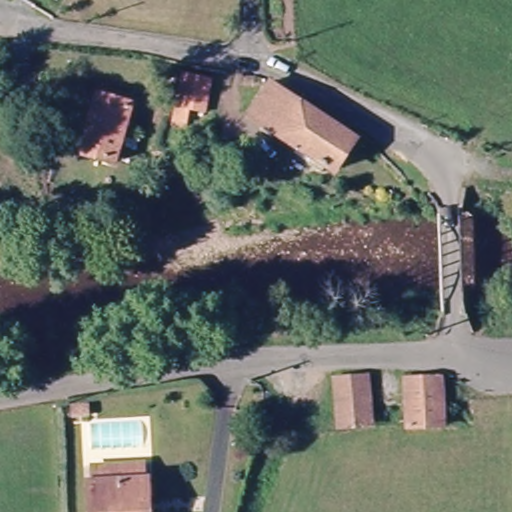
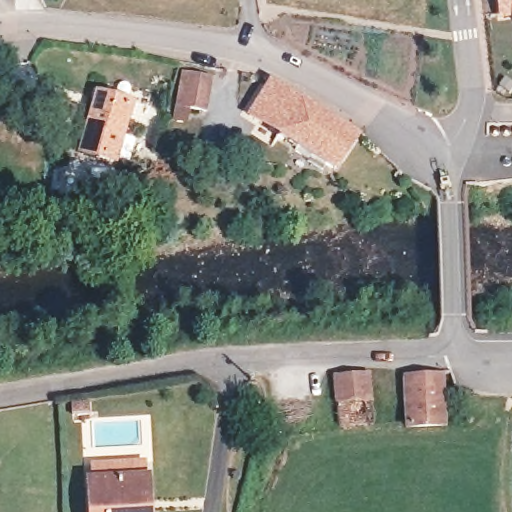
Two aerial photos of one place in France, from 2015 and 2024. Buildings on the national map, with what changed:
new [(495,0),(512,0),(512,19),(497,20),(495,0)]
unchanged [(184,123),(187,109),(192,75),(225,84),(217,115),(205,114),(201,128),(184,123)]
unchanged [(336,170),(251,116),(272,84),(357,135),(336,170)]
unchanged [(103,94),(138,105),(126,140),(119,165),(84,154),(86,145),(90,134),(103,94)]
unchanged [(376,375),(375,422),(341,423),(342,376),(376,375)]
unchanged [(448,378),(447,416),(447,425),(408,425),(408,421),(410,377),(448,378)]
unchanged [(95,466),(144,465),(144,483),(148,483),(148,507),(148,512),(96,512),(96,485),(95,466)]

